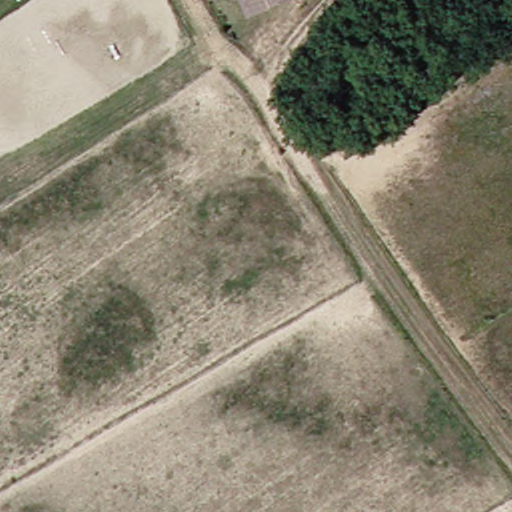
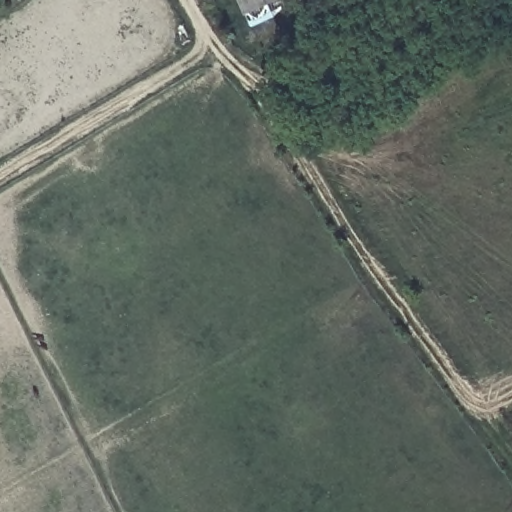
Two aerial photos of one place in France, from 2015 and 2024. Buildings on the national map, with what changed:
unchanged [(247,11),(242,0),(273,0),(247,11)]

